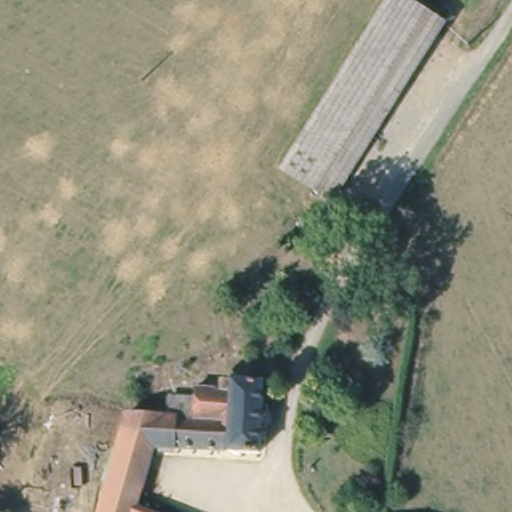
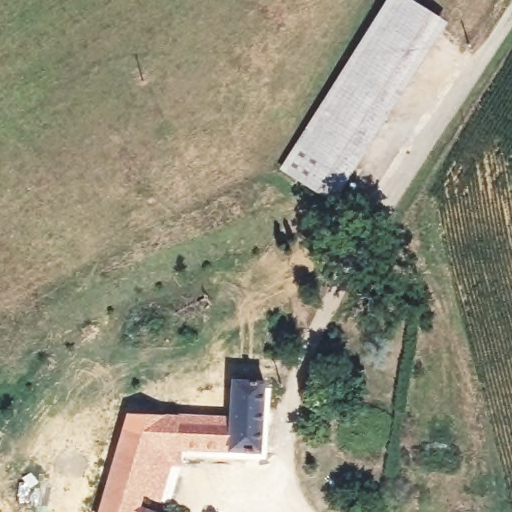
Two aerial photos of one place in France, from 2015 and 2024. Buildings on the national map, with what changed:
unchanged [(340,205),(290,173),(400,0),(412,0),(453,25),(340,205)]
unchanged [(118,451),(130,412),(195,419),(197,390),(232,390),(234,379),(265,379),(261,451),(155,447),(138,509),(148,512),(105,512),(118,451)]

